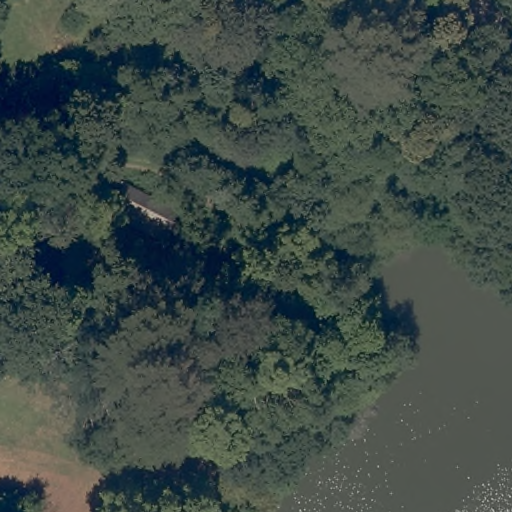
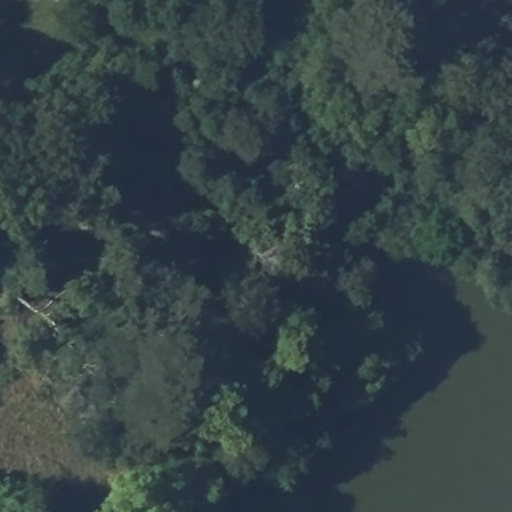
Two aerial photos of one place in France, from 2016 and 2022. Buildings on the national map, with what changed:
unchanged [(97,176),(99,188),(88,189),(86,178),(97,176)]
unchanged [(178,207),(169,224),(151,214),(159,197),(178,207)]

